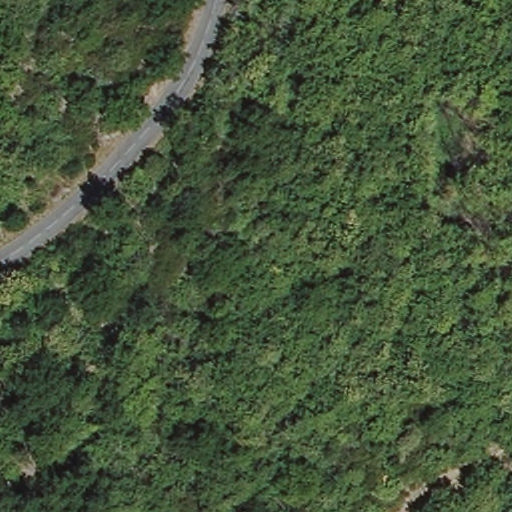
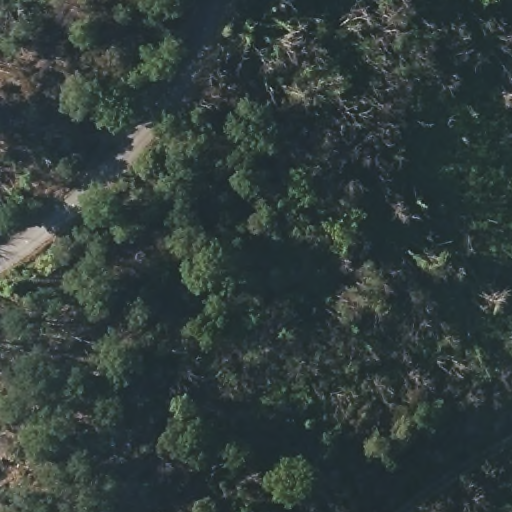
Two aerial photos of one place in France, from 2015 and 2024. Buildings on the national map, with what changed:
[]

